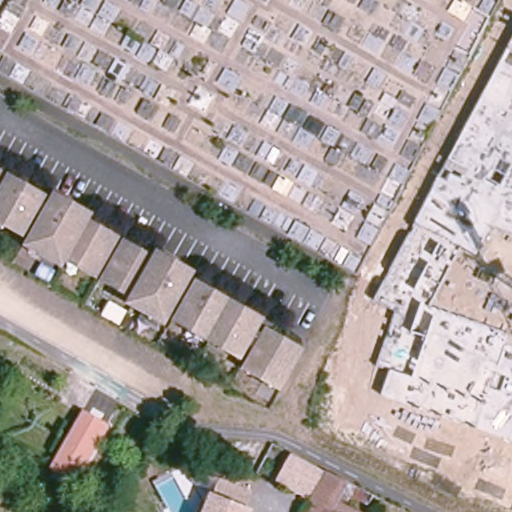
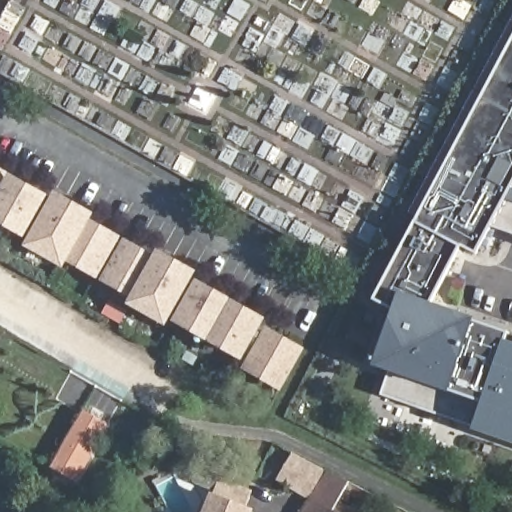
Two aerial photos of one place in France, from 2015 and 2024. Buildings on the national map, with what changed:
new [(475,424),(384,394),(395,373),(373,365),(393,309),(375,299),(416,221),(512,41),(512,186),(511,188),(512,188),(512,231),(492,224),(475,254),(460,247),(433,295),(431,303),(473,319),(508,333),(506,341),(512,343),(512,442),(473,429),(475,424)]
unchanged [(46,201),(27,236),(0,221),(0,175),(46,201)]
unchanged [(61,201),(93,219),(89,224),(119,242),(99,277),(69,259),(66,266),(35,249),(40,239),(61,201)]
unchanged [(160,264),(164,259),(195,276),(168,324),(137,306),(140,299),(111,283),(130,248),(160,264)]
unchanged [(202,289),(263,323),(244,358),(183,324),(202,289)]
unchanged [(271,336),(302,354),(282,388),(252,371),(271,336)]
unchanged [(77,482),(50,467),(83,410),(111,425),(77,482)]
unchanged [(281,477),(294,452),(326,469),(350,483),(339,504),(352,512),(300,512),(311,494),(281,477)]
unchanged [(213,496),(220,479),(253,492),(246,509),(251,511),(250,512),(207,512),(213,496)]

